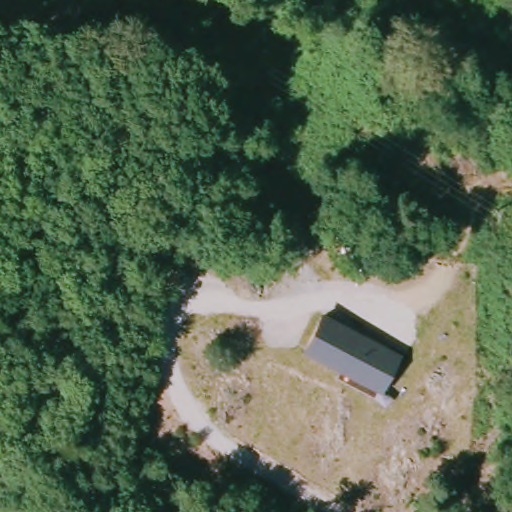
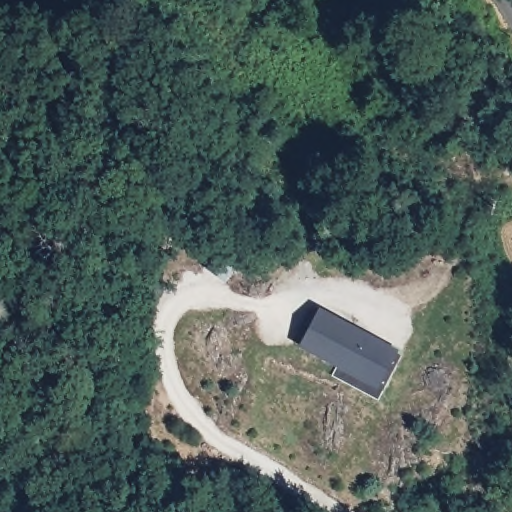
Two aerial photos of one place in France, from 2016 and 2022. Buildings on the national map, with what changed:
unchanged [(321,310),(401,353),(381,389),(301,348),(321,310)]

